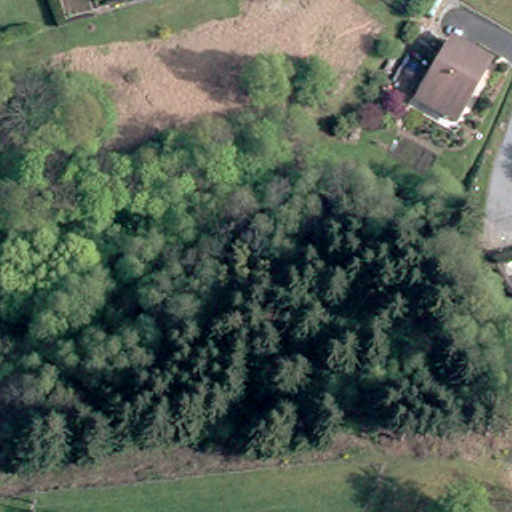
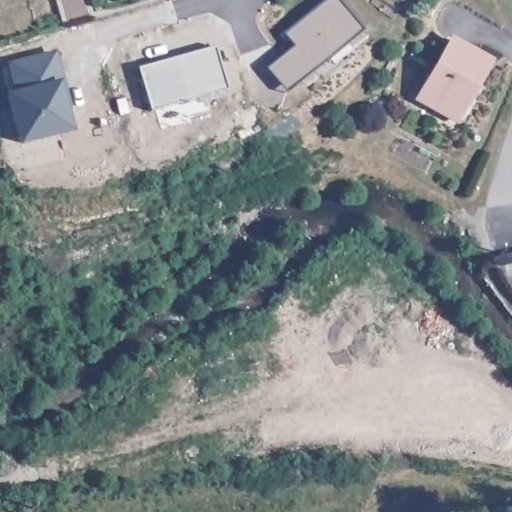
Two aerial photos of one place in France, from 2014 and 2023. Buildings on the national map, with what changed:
new [(266,69),(296,45),(288,36),(330,0),(337,0),(361,29),(286,92),(266,69)]
unchanged [(453,116),(416,96),(448,36),(487,57),(453,116)]
new [(151,111),(139,66),(216,46),(228,90),(151,111)]
new [(18,146),(6,93),(16,91),(8,62),(58,49),(65,80),(61,80),(73,133),(18,146)]

